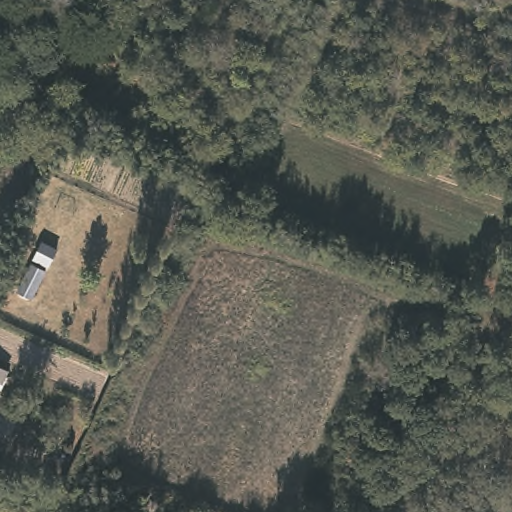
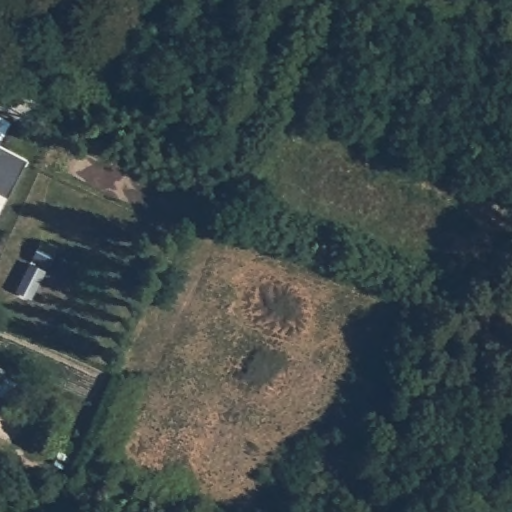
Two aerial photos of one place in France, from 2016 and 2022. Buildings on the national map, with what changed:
new [(29,157),(12,197),(0,191),(0,145),(29,157)]
unchanged [(16,369),(1,399),(0,399),(0,362),(16,369)]

